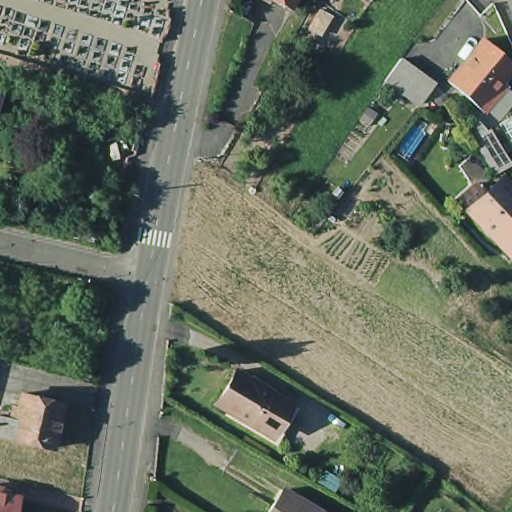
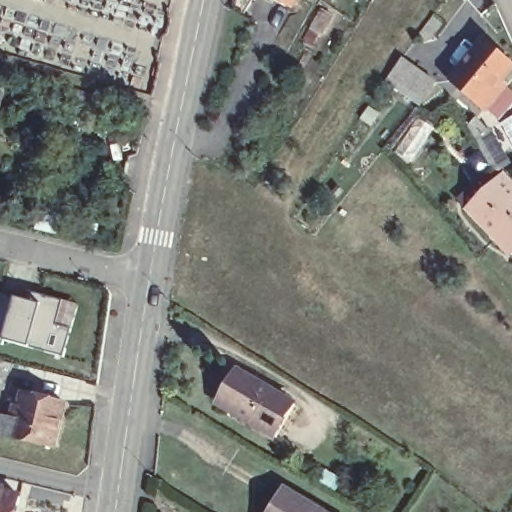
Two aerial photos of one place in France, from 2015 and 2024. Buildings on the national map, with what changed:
unchanged [(272,0),(303,0),(295,14),(272,0)]
unchanged [(506,79),(510,84),(489,110),(453,81),(487,39),(512,59),(512,72),(506,79)]
unchanged [(422,105),(389,81),(404,59),(437,83),(422,105)]
unchanged [(0,114),(0,89),(7,91),(0,114)]
unchanged [(474,138),(488,129),(509,164),(495,173),(474,138)]
unchanged [(510,253),(469,209),(499,182),(504,177),(512,185),(512,250),(510,253)]
new [(26,289),(60,300),(51,327),(67,332),(59,359),(26,348),(25,352),(0,345),(0,296),(24,304),(26,289)]
unchanged [(267,437),(217,406),(227,387),(237,372),(292,404),(284,419),(288,421),(287,422),(276,442),(267,437)]
unchanged [(17,405),(22,406),(27,388),(68,398),(57,442),(30,435),(15,432),(0,428),(0,414),(14,417),(15,414),(17,405)]
unchanged [(282,485),(327,512),(266,512),(282,485)]
demolished [(7,494),(24,498),(21,512),(0,512),(0,486),(8,489),(7,494)]
new [(0,491),(17,496),(13,512),(0,512),(0,491)]

